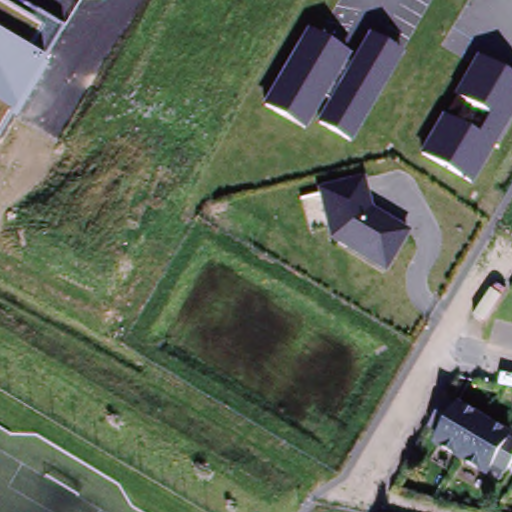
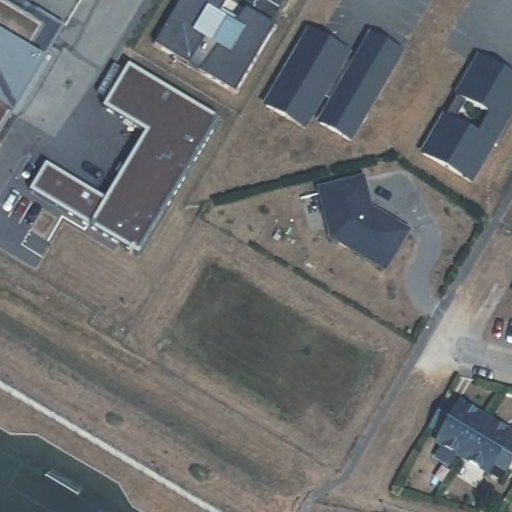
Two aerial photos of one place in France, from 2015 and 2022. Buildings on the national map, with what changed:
unchanged [(20,10),(24,3),(62,26),(41,58),(47,61),(16,116),(9,111),(0,126),(0,0),(2,0),(20,10)]
new [(184,0),(224,0),(229,3),(220,19),(236,29),(247,11),(276,29),(237,96),(156,48),(184,0)]
unchanged [(355,62),(371,35),(402,53),(350,142),(312,117),(305,129),(265,103),(310,30),(355,62)]
unchanged [(512,115),(470,186),(416,153),(441,112),(475,133),(485,116),(452,93),(477,54),(512,77),(512,115)]
new [(47,164),(106,199),(146,132),(104,107),(130,65),(221,119),(140,255),(31,191),(47,164)]
unchanged [(343,239),(325,181),(368,171),(376,206),(411,224),(392,266),(343,239)]
unchanged [(457,403),(458,400),(484,416),(460,456),(434,440),(440,431),(426,423),(443,394),(457,403)]
unchanged [(508,434),(512,436),(512,459),(505,471),(491,463),(486,472),(460,456),(484,416),(510,432),(508,434)]

